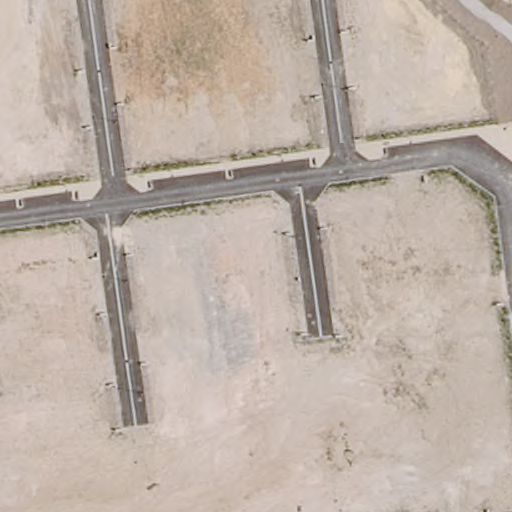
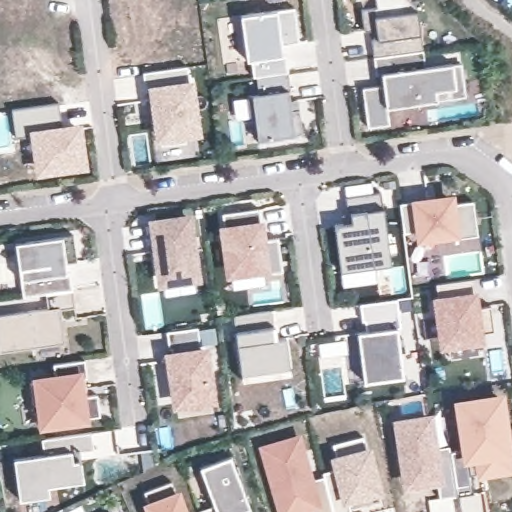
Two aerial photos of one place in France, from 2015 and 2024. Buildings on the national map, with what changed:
new [(376,57),(374,41),(381,40),(379,30),(366,31),(363,9),(379,7),(378,0),(411,0),(420,8),(426,51),(376,57)]
new [(276,11),(294,9),(298,41),(281,42),(282,55),(286,74),(256,78),(253,79),(250,61),(246,61),(240,15),(276,11)]
new [(365,89),(386,86),(385,75),(379,76),(376,57),(426,51),(428,67),(455,64),(456,65),(464,64),(466,78),(458,80),(459,88),(439,91),(440,101),(390,108),(392,125),(370,128),(365,89)]
new [(203,136),(155,144),(145,84),(141,71),(188,65),(190,79),(193,78),(203,136)]
new [(291,92),(290,92),(293,112),(299,111),(301,135),(281,137),(282,140),(258,144),(255,122),(251,122),(248,97),(259,96),(256,78),(289,74),(291,92)]
new [(58,102),(61,124),(28,127),(28,134),(14,135),(10,108),(58,102)]
new [(61,124),(82,122),(90,171),(33,177),(28,134),(28,127),(61,124)]
new [(353,220),(351,211),(349,212),(346,194),(381,189),(393,261),(343,269),(335,222),(353,220)]
new [(412,199),(454,195),(455,204),(473,202),(478,235),(456,237),(416,244),(414,230),(404,232),(400,204),(412,199)]
new [(259,208),(263,221),(266,220),(268,237),(280,235),(284,272),(271,272),(227,280),(219,226),(225,225),(222,214),(259,208)]
new [(201,281),(158,287),(148,217),(193,211),(201,281)]
new [(48,298),(45,293),(23,297),(16,242),(73,236),(77,262),(70,262),(74,294),(48,298)]
unchanged [(473,277),(475,296),(471,297),(473,307),(488,305),(492,331),(476,333),(477,338),(442,343),(434,283),(473,277)]
new [(48,298),(74,294),(77,312),(62,313),(67,347),(1,356),(0,345),(0,320),(50,312),(48,298)]
new [(366,328),(366,318),(363,318),(361,301),(398,296),(402,325),(398,326),(405,373),(365,379),(358,330),(366,328)]
new [(271,309),(273,327),(274,338),(288,338),(291,372),(242,381),(236,332),(233,316),(271,309)]
new [(201,356),(205,355),(212,402),(178,407),(173,370),(171,360),(173,360),(173,352),(170,352),(168,335),(198,331),(201,356)]
new [(99,397),(102,418),(46,426),(43,406),(35,407),(33,386),(58,382),(56,367),(86,363),(89,381),(86,381),(88,393),(89,399),(99,397)]
new [(474,468),(478,495),(461,497),(454,448),(475,445),(469,404),(504,398),(507,417),(497,420),(502,452),(512,451),(512,454),(512,469),(487,473),(475,475),(474,468)]
new [(428,416),(432,445),(448,442),(455,492),(438,495),(435,475),(406,480),(400,440),(397,440),(394,421),(428,416)]
new [(497,420),(507,417),(512,416),(512,451),(512,452),(512,451),(502,452),(497,420)]
new [(45,441),(94,434),(96,451),(82,453),(83,462),(86,482),(52,487),(53,497),(24,502),(18,461),(48,457),(45,441)]
new [(334,466),(331,457),(336,456),(333,444),(364,436),(369,446),(373,444),(384,493),(349,502),(351,512),(332,512),(321,474),(321,470),(334,466)]
new [(308,478),(321,474),(332,512),(313,512),(311,504),(282,512),(265,447),(297,438),(308,478)]
new [(234,512),(199,512),(198,510),(212,502),(198,467),(231,455),(253,505),(234,512)]
new [(173,485),(183,512),(152,512),(146,495),(173,485)]

